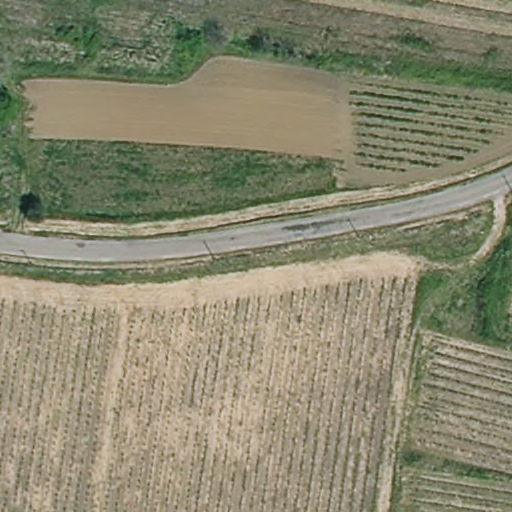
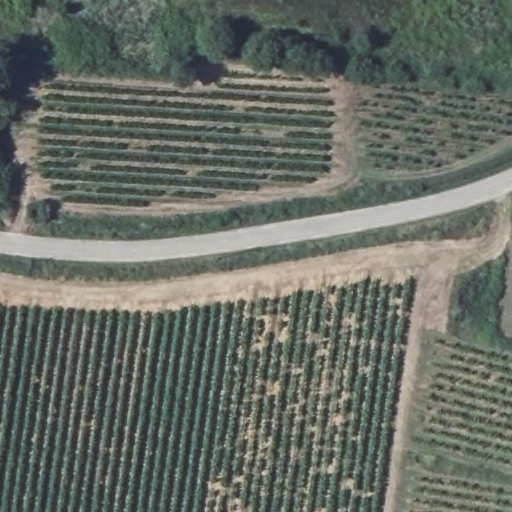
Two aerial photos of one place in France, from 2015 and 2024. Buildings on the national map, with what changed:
[]

